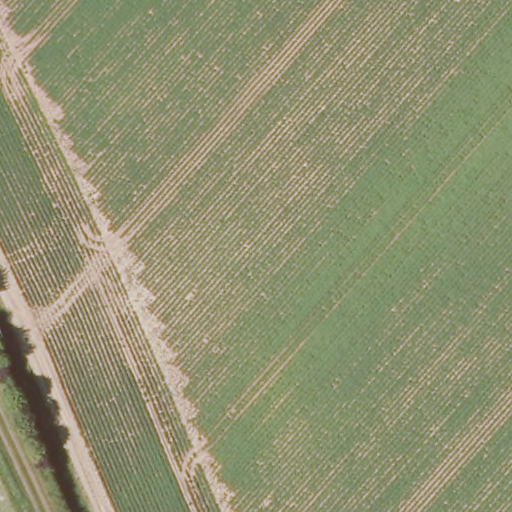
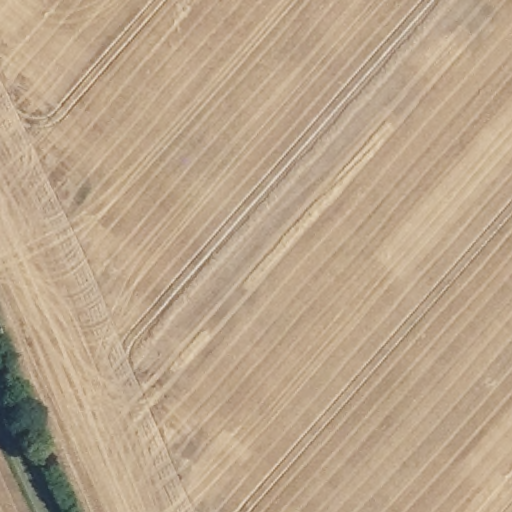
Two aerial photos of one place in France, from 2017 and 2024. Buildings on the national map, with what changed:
unchanged [(7,348),(0,350),(0,340),(5,339),(7,348)]

